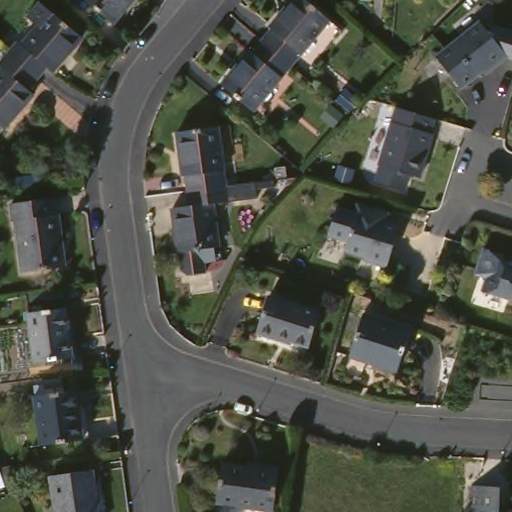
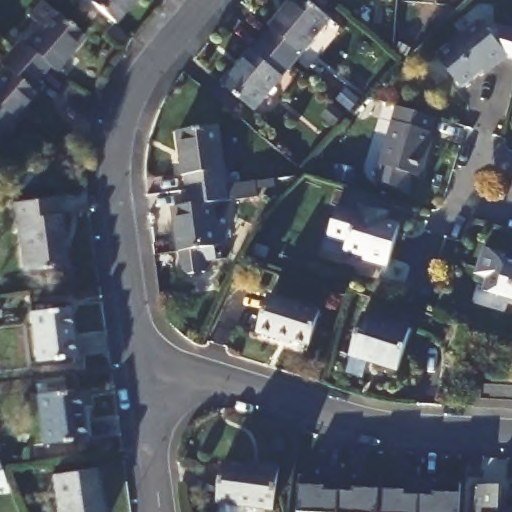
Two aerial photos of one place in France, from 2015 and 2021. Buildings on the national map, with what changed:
unchanged [(89,0),(144,0),(121,28),(89,0)]
unchanged [(274,27),(297,0),(313,0),(337,20),(298,67),(268,41),(278,30),(274,27)]
unchanged [(17,57),(27,45),(31,49),(49,29),(34,16),(46,4),(60,16),(91,44),(63,76),(59,72),(49,84),(17,57)]
unchanged [(498,66),(471,90),(443,59),(468,38),(476,38),(490,26),(497,35),(501,24),(512,27),(512,60),(501,69),(498,66)]
unchanged [(298,67),(260,112),(226,85),(254,51),(258,54),(268,41),(298,67)]
unchanged [(39,95),(44,99),(15,133),(3,147),(0,147),(0,85),(12,71),(8,68),(17,57),(49,84),(39,95)]
unchanged [(436,135),(440,136),(426,178),(386,165),(403,107),(441,119),(436,135)]
unchanged [(193,182),(188,182),(182,137),(224,131),(232,191),(195,196),(193,182)]
unchanged [(232,191),(235,207),(219,210),(225,254),(224,254),(225,266),(213,267),(215,280),(196,282),(192,281),(189,258),(184,260),(177,214),(197,211),(195,196),(232,191)]
unchanged [(52,200),(55,217),(57,216),(65,267),(24,273),(16,224),(14,222),(12,205),(52,200)]
unchanged [(342,209),(361,215),(364,206),(393,216),(391,223),(404,227),(390,267),(371,260),(372,257),(351,250),(353,244),(333,236),(342,209)]
unchanged [(501,261),(512,265),(512,304),(481,295),(486,277),(476,274),(483,249),(502,255),(501,261)]
unchanged [(278,295),(331,310),(321,347),(291,340),(290,342),(267,335),(278,295)]
unchanged [(72,308),(78,357),(40,361),(34,313),(72,308)]
unchanged [(372,313),(421,328),(407,372),(358,357),(372,313)]
unchanged [(82,385),(89,434),(46,440),(39,391),(82,385)]
unchanged [(229,463),(266,467),(267,463),(285,466),(278,509),(224,503),(229,463)]
unchanged [(92,470),(99,512),(56,512),(51,475),(92,470)]
new [(460,485),(459,495),(458,512),(298,512),(299,487),(299,475),(325,477),(325,475),(354,476),(353,480),(405,481),(405,479),(436,480),(435,484),(460,485)]
unchanged [(473,489),(502,491),(501,512),(472,512),(473,489)]

